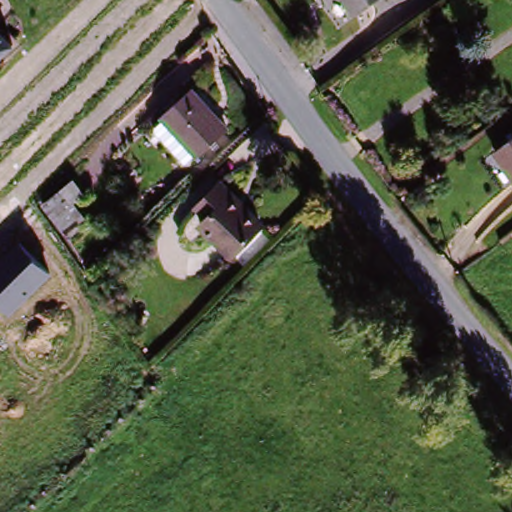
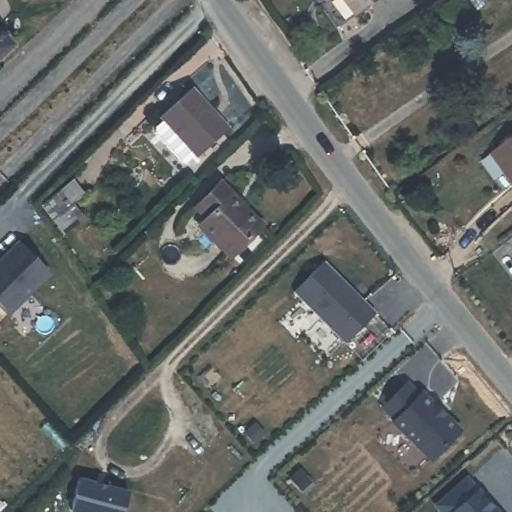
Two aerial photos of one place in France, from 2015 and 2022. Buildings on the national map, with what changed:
unchanged [(342,0),(372,0),(353,14),(342,0)]
unchanged [(11,40),(0,50),(0,27),(11,40)]
unchanged [(227,128),(198,153),(164,114),(192,89),(227,128)]
unchanged [(512,138),(512,174),(495,151),(512,138)]
unchanged [(73,178),(84,192),(72,203),(85,220),(63,239),(39,204),(73,178)]
unchanged [(205,223),(210,215),(201,204),(227,181),(239,194),(233,200),(261,232),(235,256),(205,223)]
unchanged [(19,242),(51,275),(8,316),(0,307),(0,259),(19,242)]
new [(376,314),(346,344),(292,292),(323,261),(376,314)]
new [(418,393),(421,390),(462,430),(432,463),(390,425),(393,422),(378,408),(405,380),(418,393)]
new [(433,507),(466,476),(498,512),(437,512),(433,507)]
new [(129,491),(125,512),(69,512),(78,478),(129,491)]

